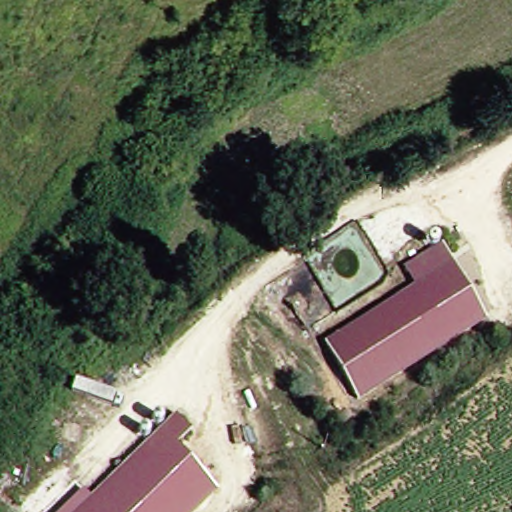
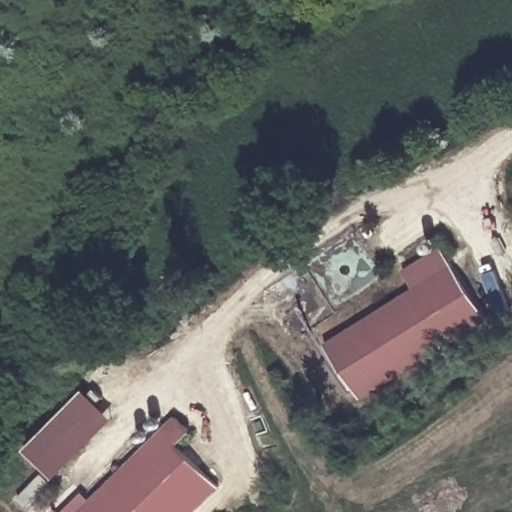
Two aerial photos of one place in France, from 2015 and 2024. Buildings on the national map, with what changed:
unchanged [(363,402),(326,350),(412,287),(400,272),(436,244),(485,311),(363,402)]
new [(114,418),(54,478),(23,448),(85,390),(114,418)]
unchanged [(188,434),(190,436),(175,450),(216,491),(194,512),(81,512),(175,421),(188,434)]

